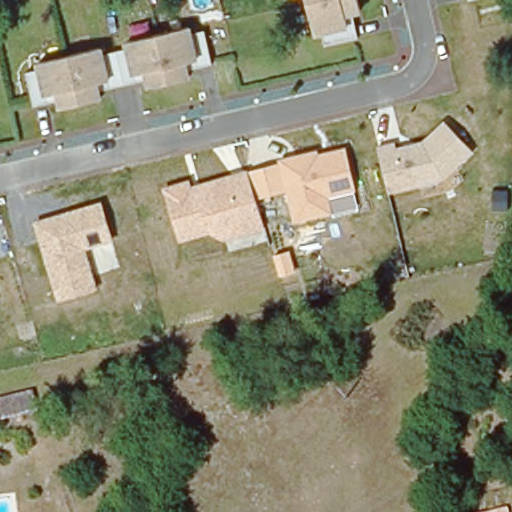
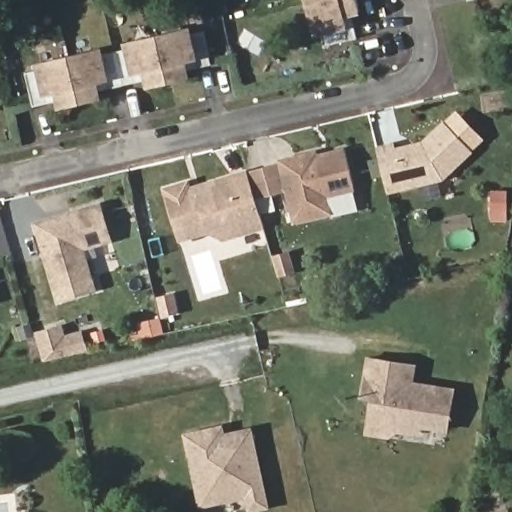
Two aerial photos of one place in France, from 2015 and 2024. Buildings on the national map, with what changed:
unchanged [(343,16),(346,27),(313,34),(305,0),(358,0),(360,12),(343,16)]
unchanged [(191,25),(200,59),(188,61),(191,77),(146,85),(144,71),(130,74),(123,41),(191,25)]
unchanged [(101,45),(109,77),(98,80),(102,97),(57,107),(55,92),(40,95),(33,62),(101,45)]
unchanged [(395,141),(396,146),(424,140),(443,120),(474,151),(445,181),(386,194),(376,145),(395,141)]
unchanged [(316,150),(318,156),(347,147),(357,191),(329,197),(333,214),(294,224),(278,159),(316,150)]
unchanged [(190,180),(192,186),(247,171),(264,229),(225,242),(209,235),(179,242),(162,187),(190,180)]
unchanged [(86,251),(99,291),(56,303),(33,219),(102,200),(115,244),(86,251)]
new [(62,325),(66,335),(82,330),(87,347),(45,360),(37,332),(62,325)]
new [(424,428),(415,435),(398,433),(390,438),(366,435),(371,400),(361,397),(367,356),(417,363),(415,381),(456,387),(450,432),(424,428)]
demolished [(40,414),(2,422),(0,412),(0,398),(34,390),(40,414)]
new [(253,427),(270,508),(251,512),(249,512),(246,498),(200,508),(184,432),(224,423),(226,433),(253,427)]

